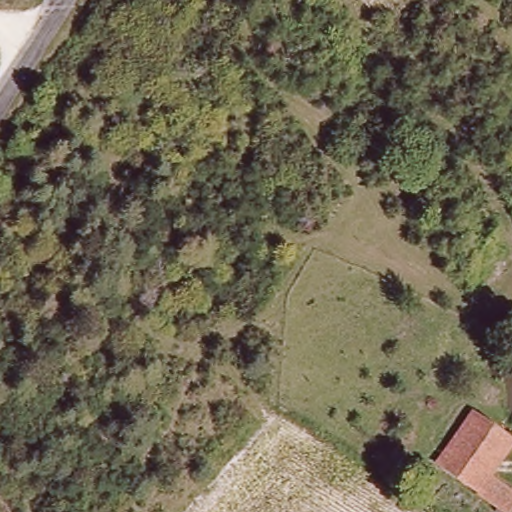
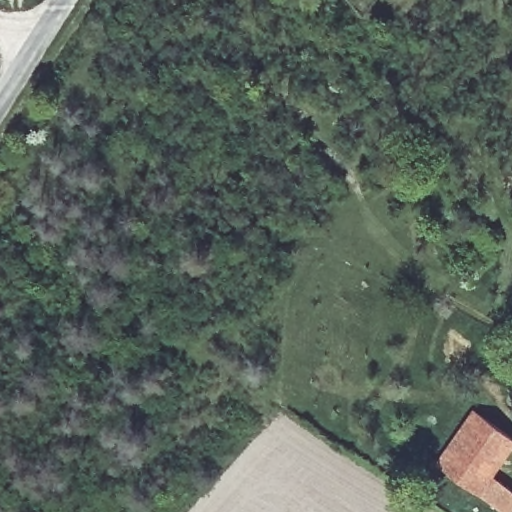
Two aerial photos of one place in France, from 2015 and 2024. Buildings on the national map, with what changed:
unchanged [(512,509),(510,512),(496,512),(437,467),(475,416),(512,444),(512,450),(491,477),(512,492),(512,509)]

